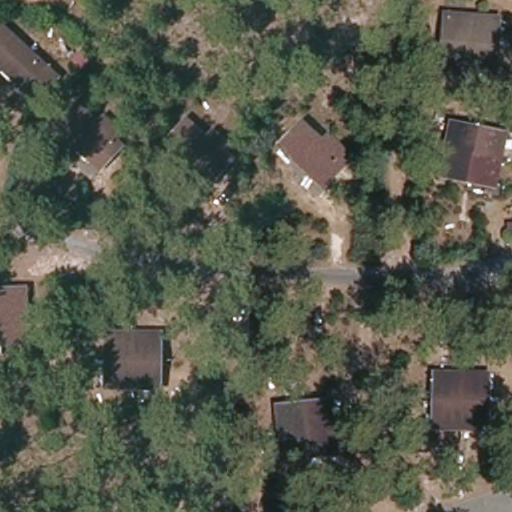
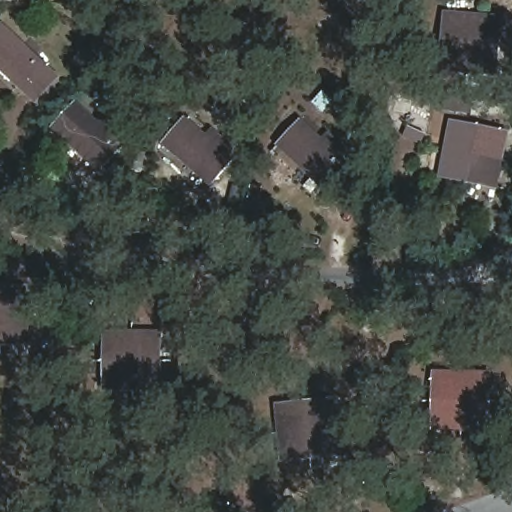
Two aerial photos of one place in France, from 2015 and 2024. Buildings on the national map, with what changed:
unchanged [(444,58),(446,12),(501,15),(498,62),(444,58)]
unchanged [(0,68),(0,24),(57,71),(36,97),(24,87),(2,70),(0,68)]
unchanged [(99,164),(64,132),(87,110),(119,141),(99,164)]
unchanged [(441,175),(451,118),(503,128),(496,185),(441,175)]
unchanged [(206,177),(168,147),(192,121),(227,150),(206,177)]
unchanged [(320,182),(283,150),(308,125),(342,155),(320,182)]
unchanged [(0,342),(0,289),(24,288),(27,341),(0,342)]
unchanged [(103,385),(104,330),(159,331),(160,386),(103,385)]
unchanged [(429,430),(432,371),(487,375),(485,431),(429,430)]
unchanged [(281,457),(276,402),(333,398),(337,453),(281,457)]

